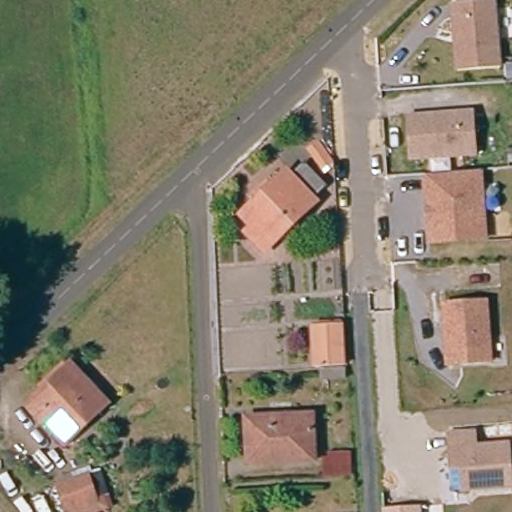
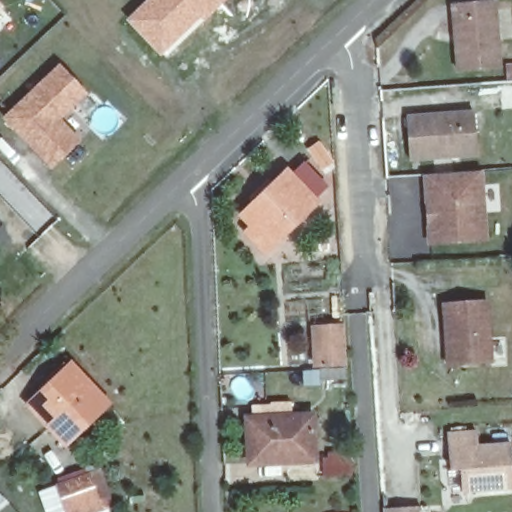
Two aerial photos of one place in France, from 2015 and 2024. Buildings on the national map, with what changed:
new [(227,0),(227,1),(161,58),(125,20),(145,0),(227,0)]
unchanged [(458,69),(454,1),(467,0),(497,0),(501,64),(458,69)]
new [(0,8),(0,2),(3,6),(0,8)]
new [(59,63),(89,95),(64,119),(82,138),(51,170),(1,118),(59,63)]
unchanged [(480,151),(412,159),(410,116),(478,109),(480,151)]
unchanged [(480,169),(483,237),(428,241),(424,175),(424,174),(480,169)]
unchanged [(300,171),(323,198),(266,248),(252,233),(259,226),(247,215),(300,171)]
unchanged [(491,365),(447,367),(444,298),(488,295),(491,365)]
unchanged [(322,385),(322,369),(309,370),(310,327),(348,324),(350,368),(347,368),(347,384),(322,385)]
unchanged [(56,432),(33,406),(73,366),(109,409),(88,429),(69,446),(56,432)]
unchanged [(308,413),(307,458),(245,461),(245,415),(308,413)]
unchanged [(462,490),(461,469),(451,469),(449,433),(479,430),(480,445),(512,442),(512,486),(462,490)]
unchanged [(355,477),(319,478),(319,461),(328,461),(328,450),(354,449),(355,477)]
new [(101,461),(114,506),(97,512),(66,512),(55,478),(101,461)]
demolished [(98,480),(103,505),(79,511),(74,486),(98,480)]
unchanged [(421,512),(385,512),(385,507),(421,506),(421,512)]

